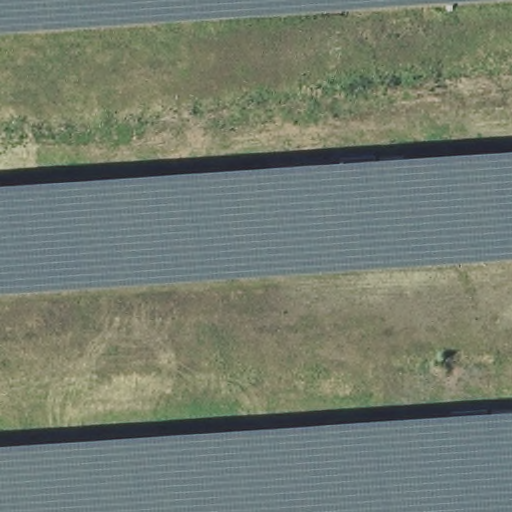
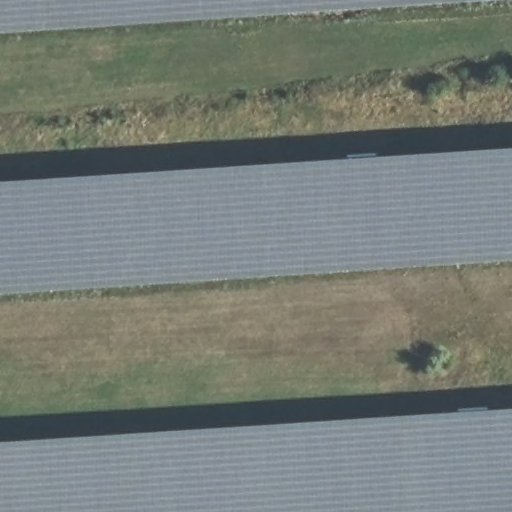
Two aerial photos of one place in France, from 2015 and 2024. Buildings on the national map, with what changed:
unchanged [(0,31),(0,0),(477,0),(0,31)]
unchanged [(512,257),(0,290),(0,184),(512,151),(512,257)]
unchanged [(512,512),(0,512),(0,446),(512,413),(512,512)]

